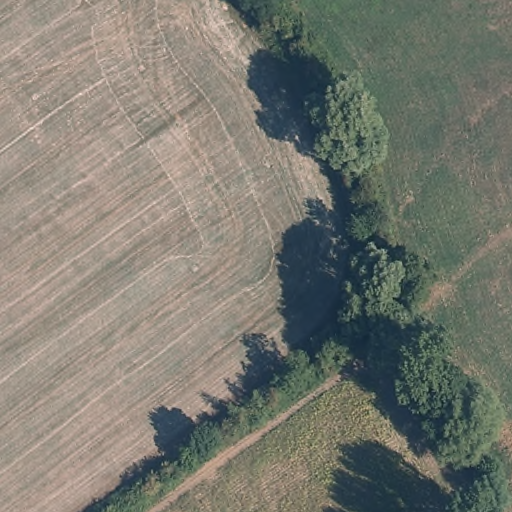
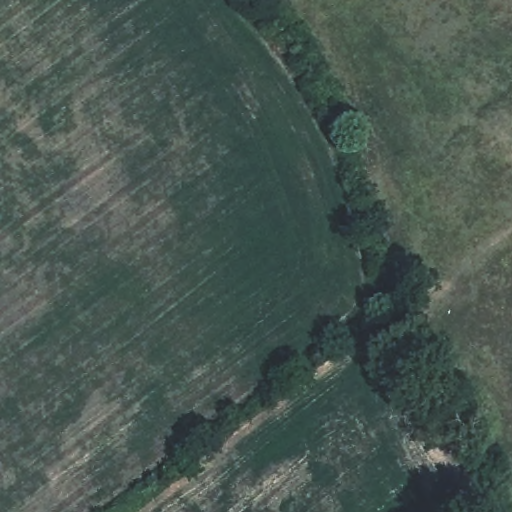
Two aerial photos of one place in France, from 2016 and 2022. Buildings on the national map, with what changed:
[]

